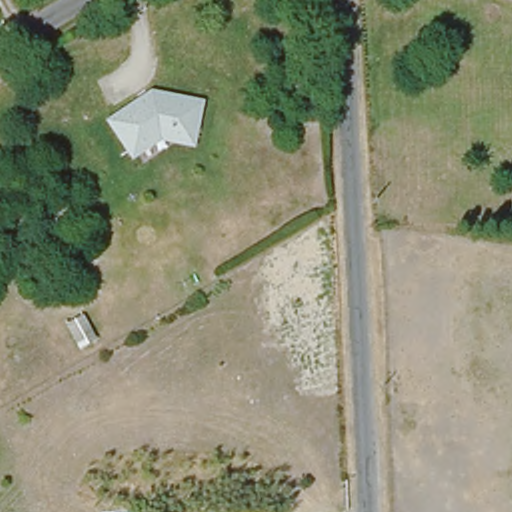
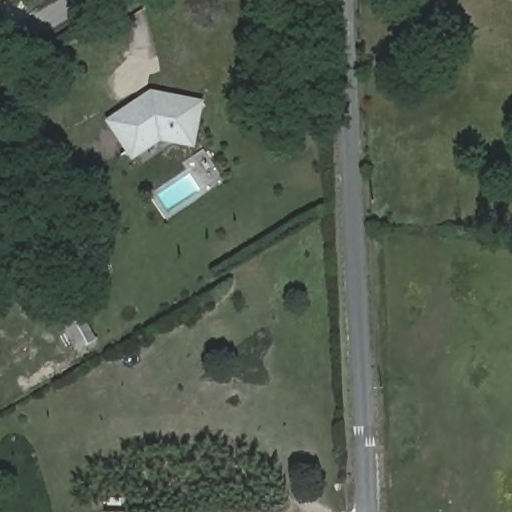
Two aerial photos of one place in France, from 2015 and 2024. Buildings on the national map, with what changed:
unchanged [(152,86),(204,96),(192,147),(159,140),(130,159),(102,119),(152,86)]

